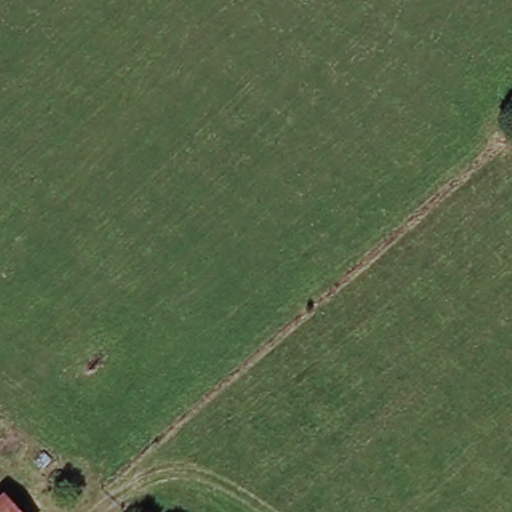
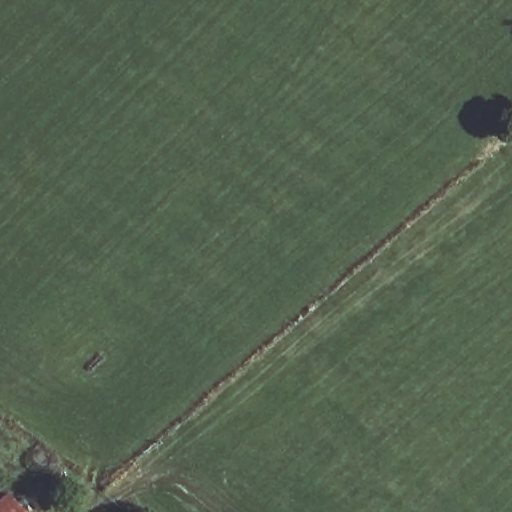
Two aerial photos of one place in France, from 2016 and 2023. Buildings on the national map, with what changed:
unchanged [(29,512),(0,512),(0,505),(12,494),(29,512)]

